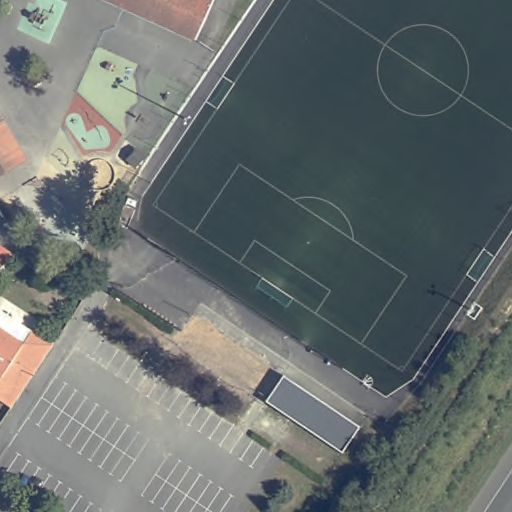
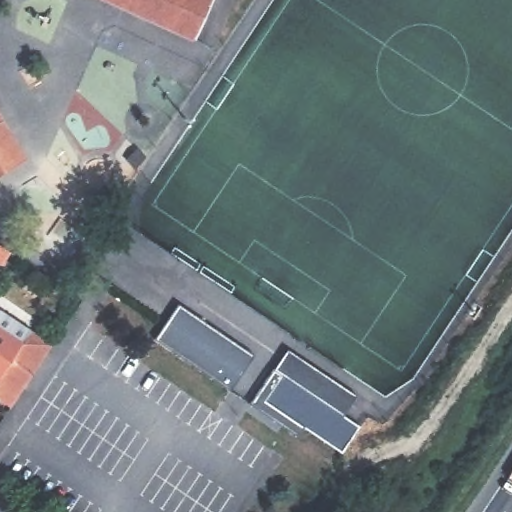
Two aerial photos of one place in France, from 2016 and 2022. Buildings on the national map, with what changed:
unchanged [(201,38),(117,0),(217,0),(201,38)]
unchanged [(8,120),(0,125),(0,108),(8,120)]
unchanged [(8,120),(31,159),(0,178),(0,125),(8,120)]
unchanged [(167,143),(168,142),(169,142),(169,141),(170,141),(170,142),(171,142),(171,143),(172,143),(172,144),(172,145),(171,146),(170,146),(169,146),(168,146),(167,145),(167,144),(167,143)]
unchanged [(0,266),(0,244),(10,251),(0,266)]
new [(231,391),(155,339),(179,304),(255,355),(247,367),(231,391)]
demolished [(260,391),(178,336),(194,314),(275,369),(266,382),(260,391)]
unchanged [(0,383),(0,321),(4,315),(32,333),(36,336),(57,349),(39,378),(16,412),(0,402),(0,390),(4,385),(0,383)]
unchanged [(338,450),(266,401),(284,374),(301,386),(344,415),(357,424),(361,426),(343,453),(338,450)]

